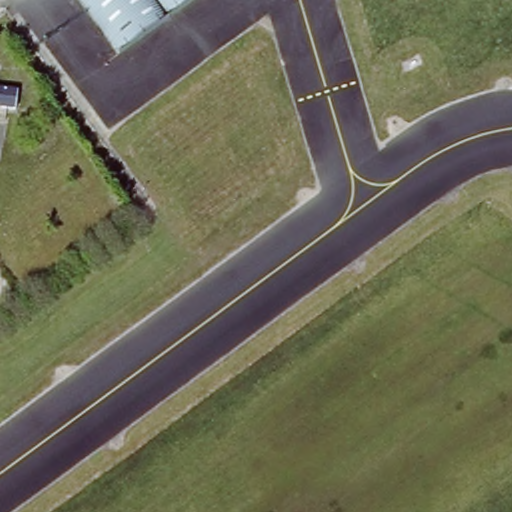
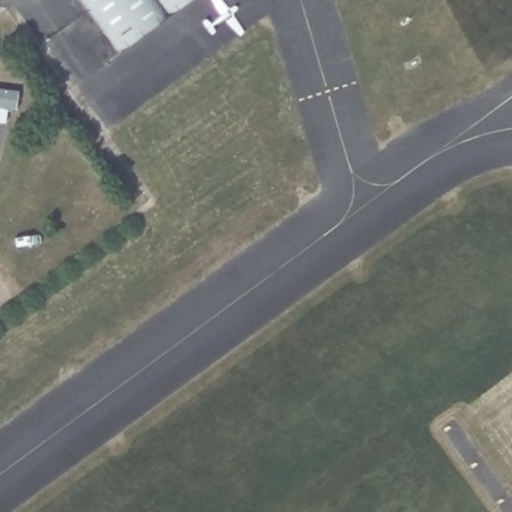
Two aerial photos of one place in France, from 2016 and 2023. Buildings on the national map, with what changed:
unchanged [(83,0),(194,0),(122,55),(83,0)]
unchanged [(20,91),(18,112),(9,111),(7,123),(0,122),(0,89),(20,91)]

